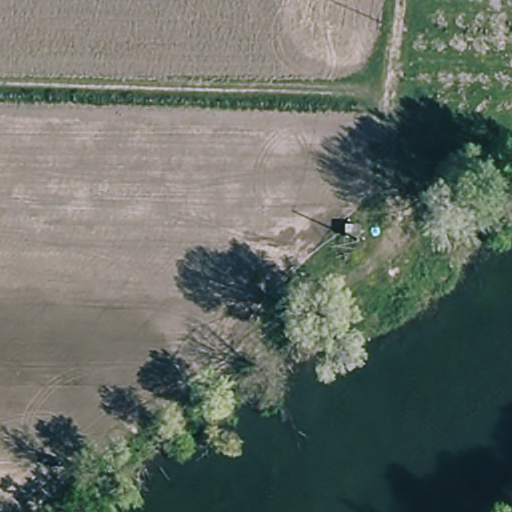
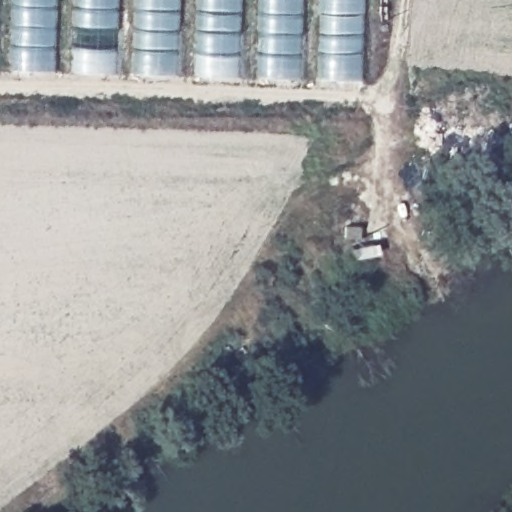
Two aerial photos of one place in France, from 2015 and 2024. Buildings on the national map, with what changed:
new [(11,70),(12,0),(56,0),(55,72),(11,70)]
new [(118,0),(116,74),(71,72),(73,0),(118,0)]
new [(132,74),(134,0),(180,0),(178,75),(132,74)]
new [(240,0),(238,77),(196,76),(198,0),(240,0)]
new [(257,79),(259,0),(303,0),(301,79),(257,79)]
new [(363,0),(361,80),(318,80),(320,0),(363,0)]
unchanged [(358,239),(344,238),(345,225),(359,225),(358,239)]

